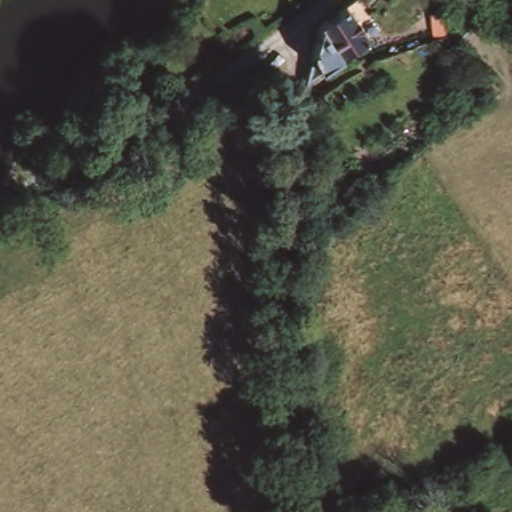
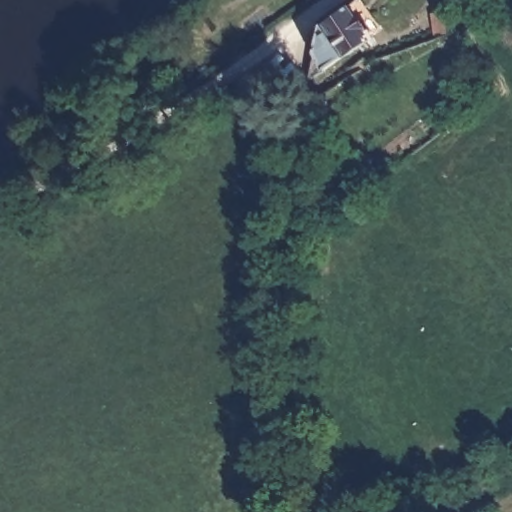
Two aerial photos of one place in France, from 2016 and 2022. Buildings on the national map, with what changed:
unchanged [(322,29),(349,6),(367,37),(311,76),(322,29)]
unchanged [(432,11),(446,9),(447,17),(448,34),(433,37),(432,11)]

